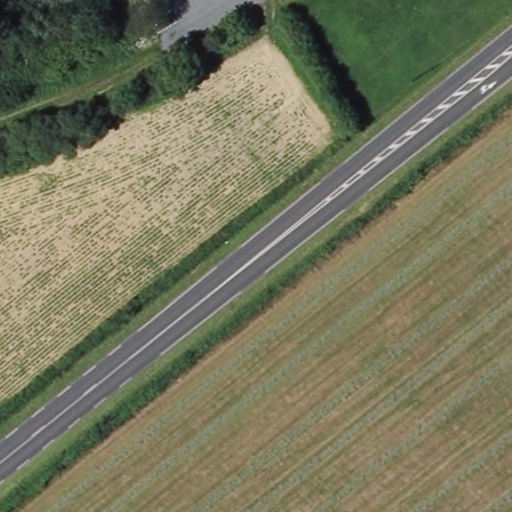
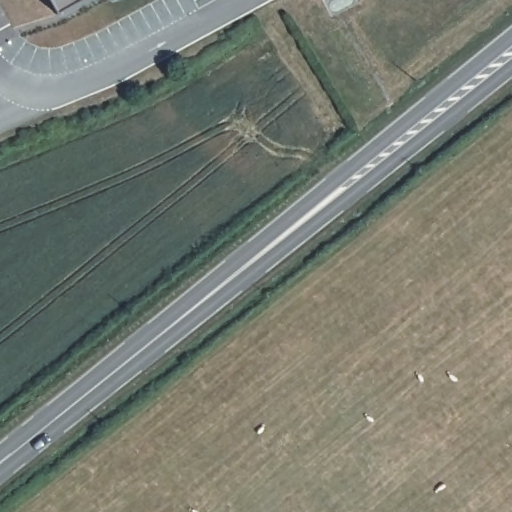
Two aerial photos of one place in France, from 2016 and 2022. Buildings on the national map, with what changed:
new [(57,13),(50,0),(80,0),(57,13)]

